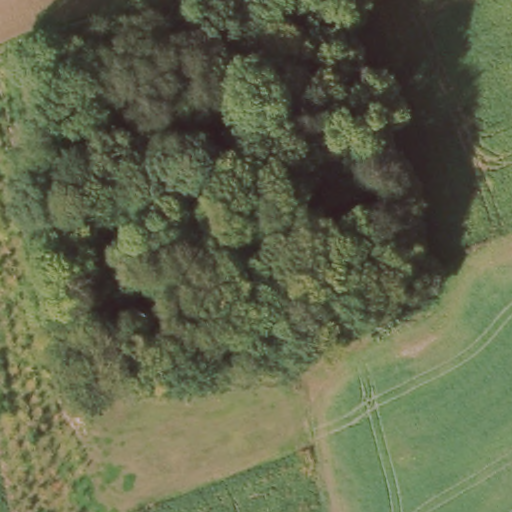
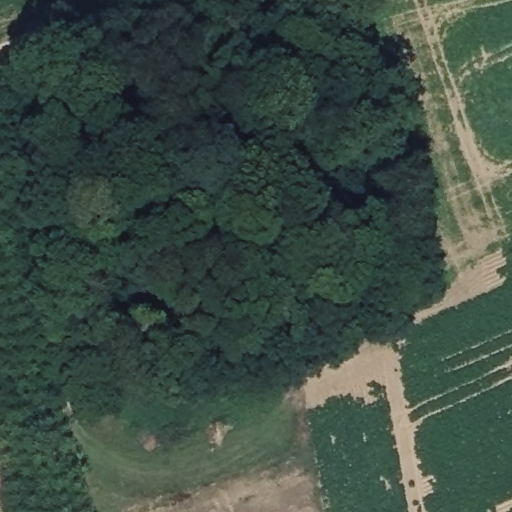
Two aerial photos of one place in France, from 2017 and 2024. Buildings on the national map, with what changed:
unchanged [(245,66),(265,59),(276,56),(284,82),(273,85),(253,91),(245,66)]

